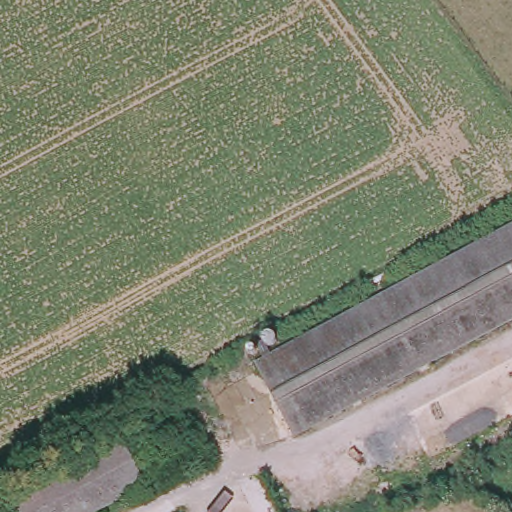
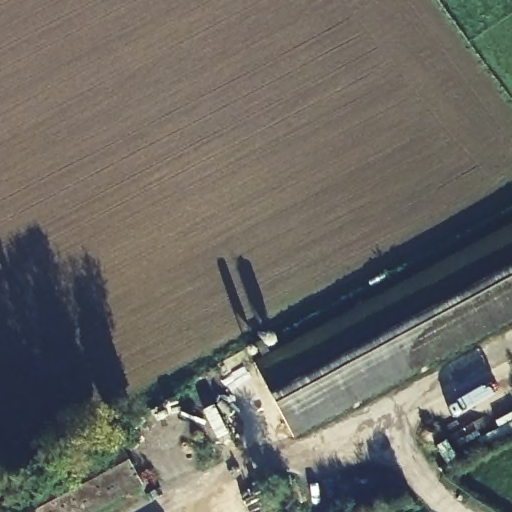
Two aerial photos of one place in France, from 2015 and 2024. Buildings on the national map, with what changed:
unchanged [(512,232),(512,327),(297,439),(256,366),(350,317),(512,232)]
unchanged [(143,486),(94,512),(13,512),(6,497),(116,436),(143,486)]

